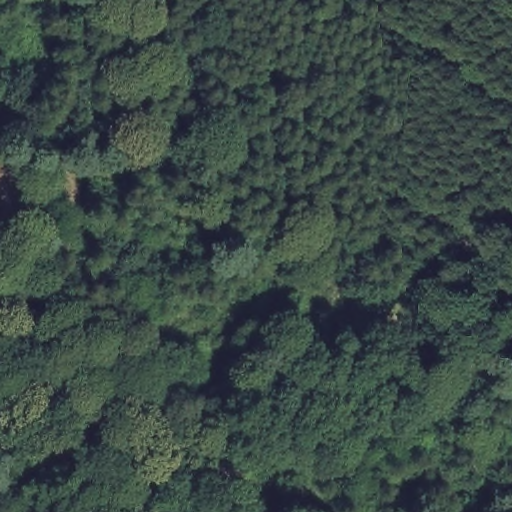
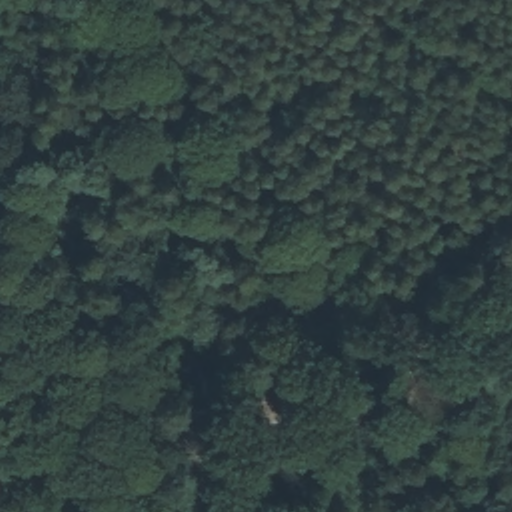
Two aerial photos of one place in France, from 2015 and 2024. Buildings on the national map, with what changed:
[]

